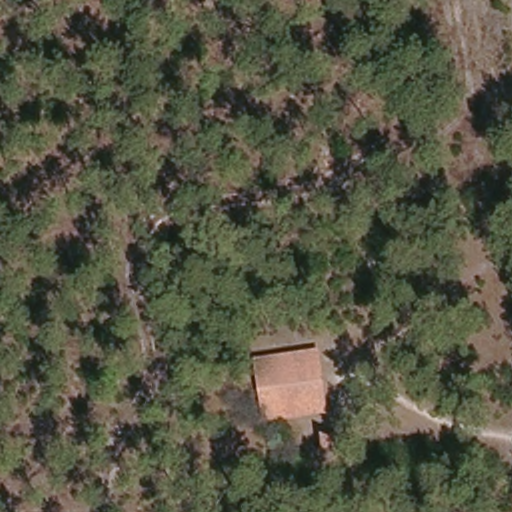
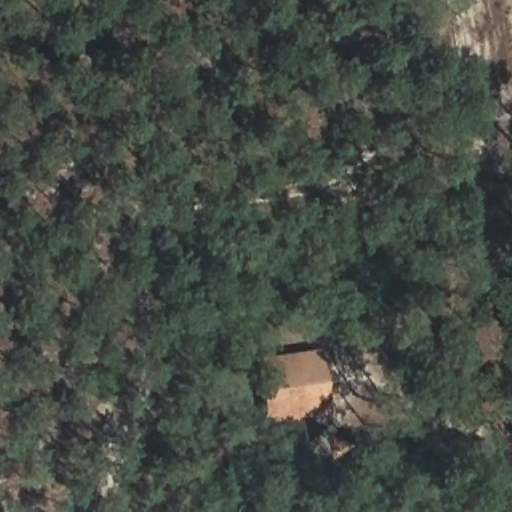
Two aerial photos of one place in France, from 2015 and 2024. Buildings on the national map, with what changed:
unchanged [(319,352),(329,415),(292,421),(281,356),(319,352)]
unchanged [(292,421),(264,425),(250,360),(281,356),(292,421)]

